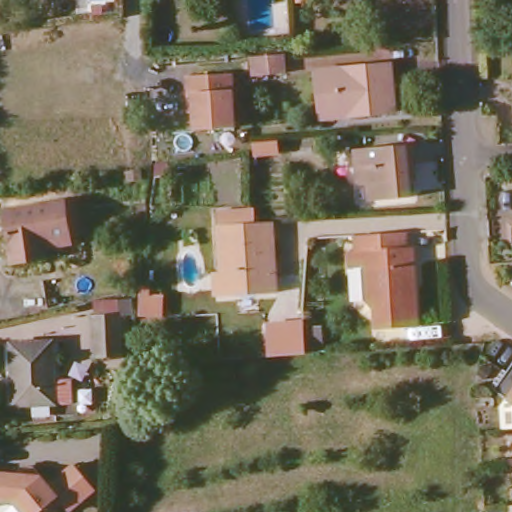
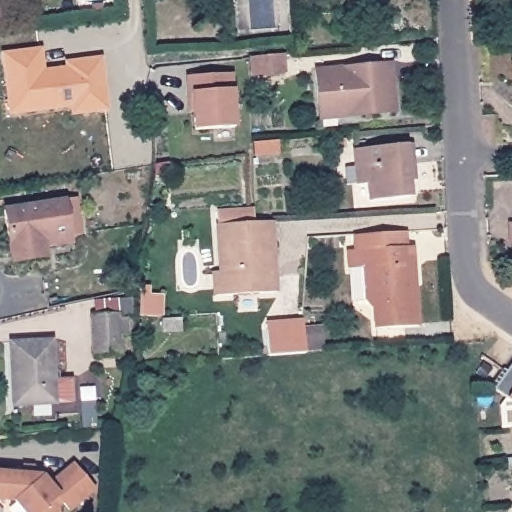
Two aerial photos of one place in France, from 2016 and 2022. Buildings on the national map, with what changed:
new [(64,67),(63,61),(101,57),(108,112),(70,115),(70,108),(8,115),(0,52),(42,48),(45,69),(64,67)]
unchanged [(253,78),(251,60),(282,57),(284,75),(253,78)]
unchanged [(320,113),(315,71),(390,64),(395,112),(347,117),(320,120),(320,113)]
unchanged [(188,97),(187,80),(230,77),(234,131),(195,134),(194,115),(190,115),(188,97)]
unchanged [(381,200),(380,183),(367,184),(365,150),(414,146),(418,197),(381,200)]
unchanged [(0,229),(0,206),(57,197),(57,199),(70,198),(75,228),(62,230),(62,231),(63,238),(36,243),(37,249),(38,255),(5,261),(3,255),(0,229)]
unchanged [(213,273),(220,272),(217,230),(216,227),(216,213),(253,212),(253,225),(270,224),(275,292),(231,295),(215,296),(213,273)]
unchanged [(507,245),(506,227),(512,227),(512,245),(507,245)]
unchanged [(355,304),(351,270),(347,270),(346,252),(353,252),(352,237),(403,233),(405,248),(410,247),(416,326),(376,329),(375,311),(365,303),(355,304)]
unchanged [(165,317),(156,317),(145,318),(143,298),(163,297),(165,317)]
unchanged [(100,356),(97,316),(123,314),(125,355),(100,356)]
unchanged [(303,337),(303,326),(317,326),(318,337),(303,337)]
unchanged [(13,404),(10,342),(52,341),(55,402),(13,404)]
unchanged [(497,391),(507,374),(512,366),(512,401),(497,391)]
unchanged [(15,503),(0,501),(0,475),(25,477),(26,469),(35,470),(50,488),(75,467),(95,492),(71,512),(67,512),(62,505),(58,508),(58,512),(22,512),(15,503)]

